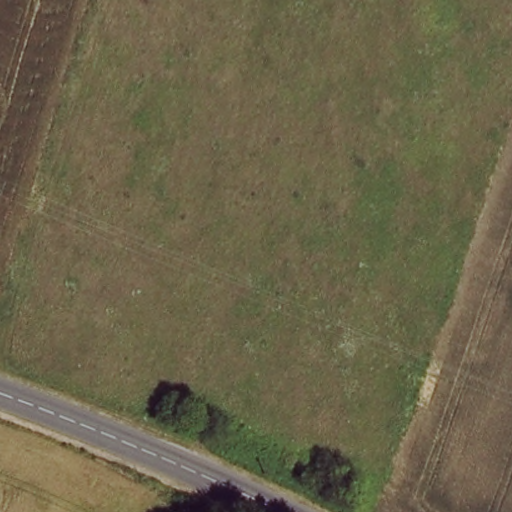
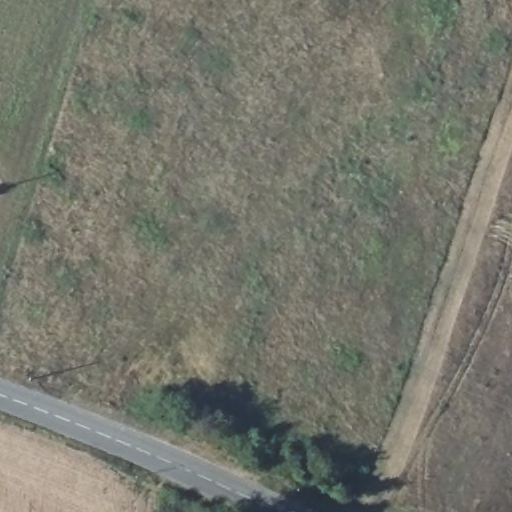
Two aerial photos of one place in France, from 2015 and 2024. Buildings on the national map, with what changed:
[]

